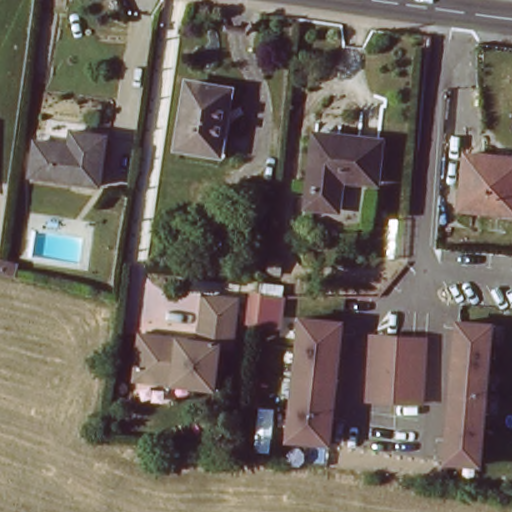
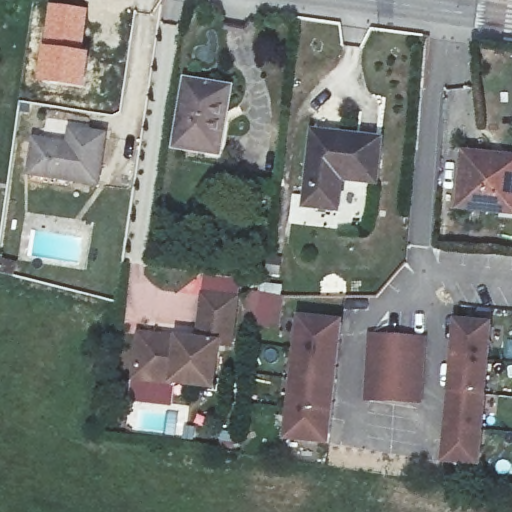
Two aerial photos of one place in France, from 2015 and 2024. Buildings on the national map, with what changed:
new [(50,3),(88,8),(84,51),(91,52),(87,89),(40,83),(50,3)]
unchanged [(232,91),(222,155),(178,148),(187,84),(232,91)]
unchanged [(66,145),(68,126),(103,132),(98,184),(28,177),(32,141),(66,145)]
unchanged [(373,183),(340,178),(337,212),(307,207),(317,132),(340,136),(379,141),(373,183)]
unchanged [(512,156),(512,212),(461,207),(468,151),(512,156)]
unchanged [(182,234),(167,232),(172,208),(185,210),(182,234)]
new [(234,301),(202,297),(204,276),(237,281),(234,301)]
unchanged [(255,295),(285,298),(280,335),(253,329),(255,295)]
unchanged [(143,377),(147,341),(187,346),(187,348),(205,351),(212,302),(244,306),(238,353),(226,352),(221,394),(181,389),(142,385),(143,377)]
unchanged [(340,448),(293,443),(303,321),(350,325),(340,448)]
unchanged [(500,332),(480,471),(447,466),(467,327),(500,332)]
unchanged [(372,401),(381,337),(407,340),(398,405),(372,401)]
unchanged [(434,345),(425,408),(399,405),(398,405),(407,340),(434,345)]

